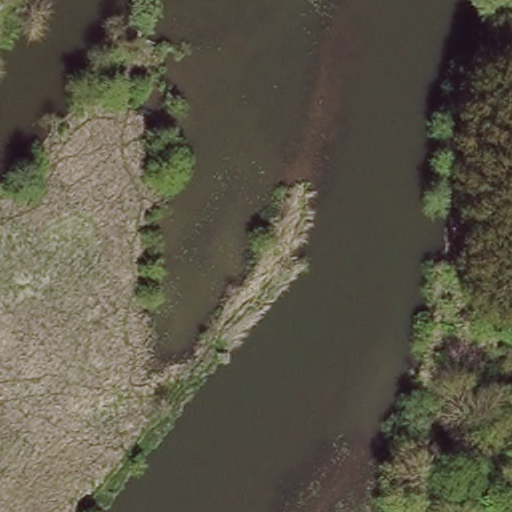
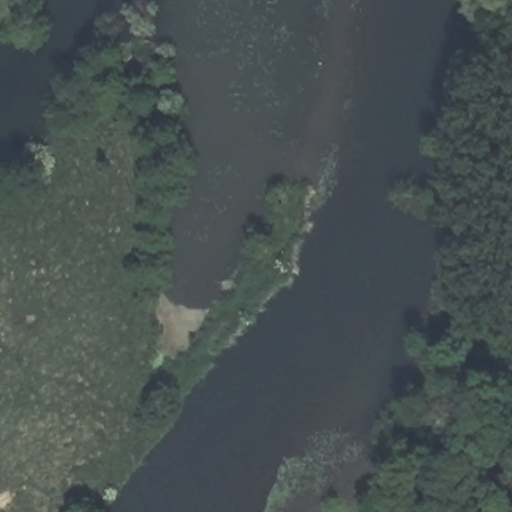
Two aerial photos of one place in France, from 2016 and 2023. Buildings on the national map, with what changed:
[]

